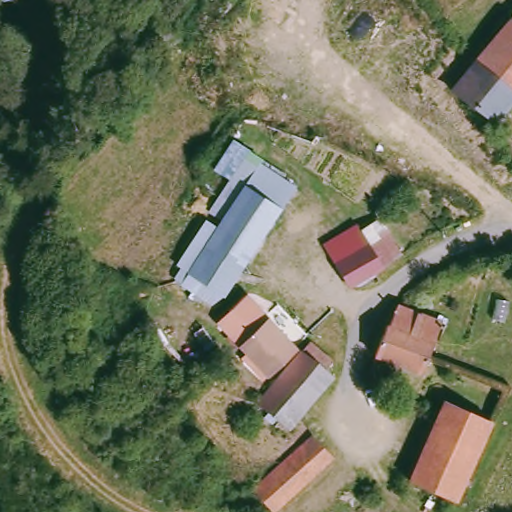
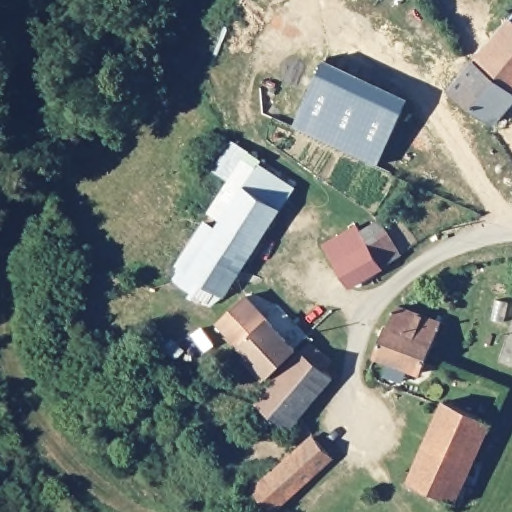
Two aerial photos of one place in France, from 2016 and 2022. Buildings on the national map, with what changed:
unchanged [(495,121),(455,87),(512,22),(512,103),(495,121)]
new [(404,111),(379,166),(297,128),(322,74),(404,111)]
unchanged [(189,289),(198,277),(186,269),(213,228),(226,235),(268,170),(304,193),(233,299),(224,294),(216,306),(189,289)]
unchanged [(364,288),(356,282),(347,267),(337,251),(371,230),(382,247),(397,270),(364,288)]
unchanged [(223,325),(253,298),(301,353),(271,380),(223,325)]
unchanged [(443,324),(422,372),(376,354),(389,322),(394,324),(401,305),(443,324)]
unchanged [(293,435),(261,409),(308,356),(314,348),(338,367),(331,376),(340,383),(293,435)]
unchanged [(492,421),(456,502),(411,481),(447,400),(492,421)]
unchanged [(330,465),(281,509),(261,487),(310,444),(330,465)]

